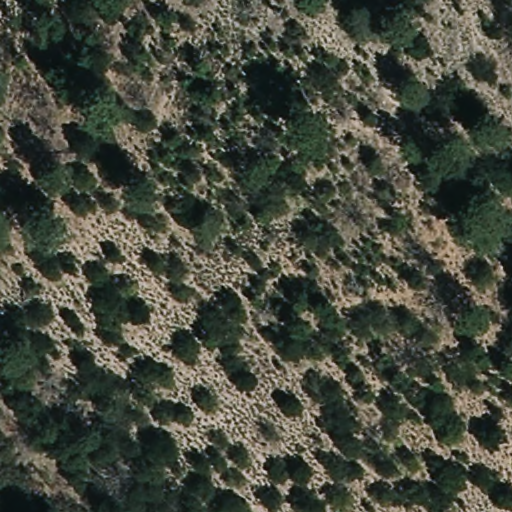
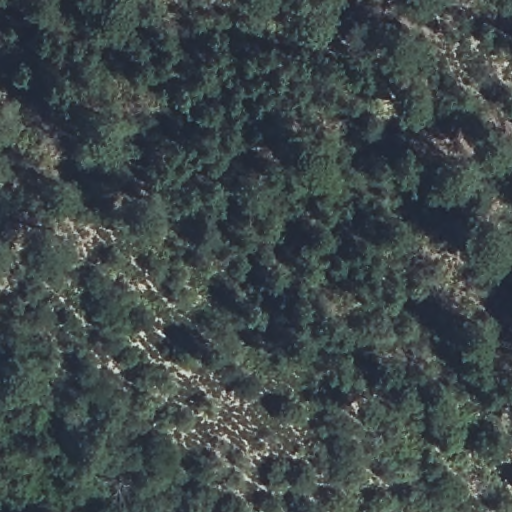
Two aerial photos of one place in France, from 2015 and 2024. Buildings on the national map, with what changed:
[]

